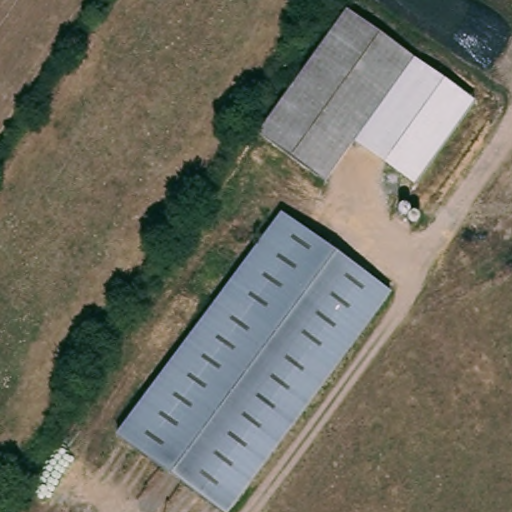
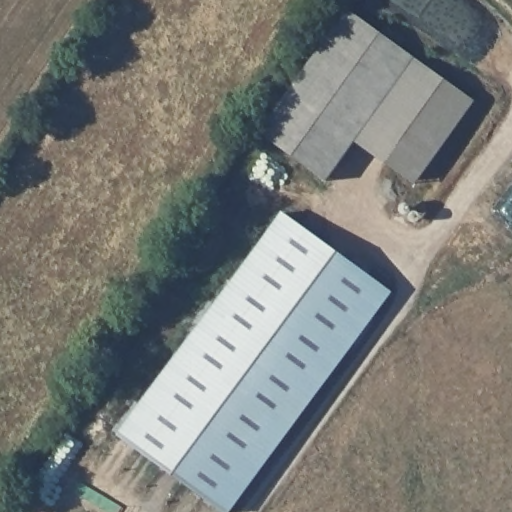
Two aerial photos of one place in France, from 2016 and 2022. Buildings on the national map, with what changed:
unchanged [(258,133),(346,8),(414,59),(474,101),(415,185),(356,143),(326,183),(258,133)]
unchanged [(238,512),(223,512),(120,439),(283,213),(395,293),(238,512)]
unchanged [(1,512),(0,512),(0,511),(1,512)]

